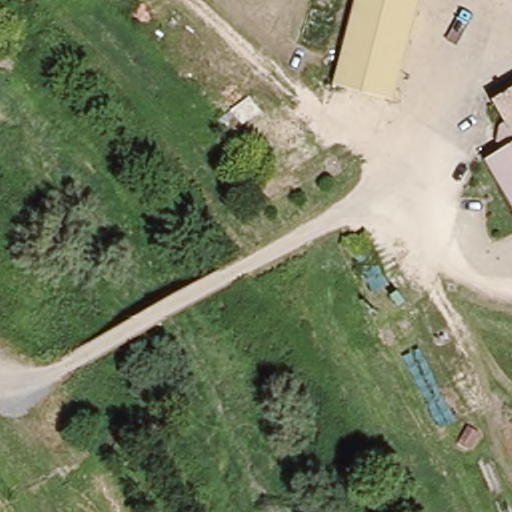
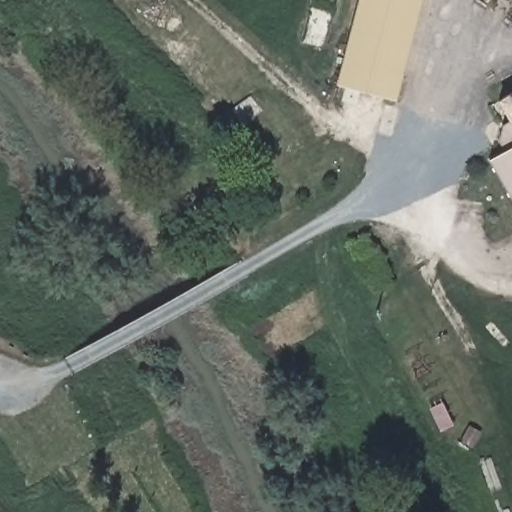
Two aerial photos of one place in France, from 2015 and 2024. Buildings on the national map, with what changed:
unchanged [(337,83),(361,0),(422,0),(393,99),(337,83)]
unchanged [(501,94),(512,88),(512,111),(501,94)]
unchanged [(487,153),(505,143),(501,136),(506,119),(512,113),(512,199),(487,153)]

